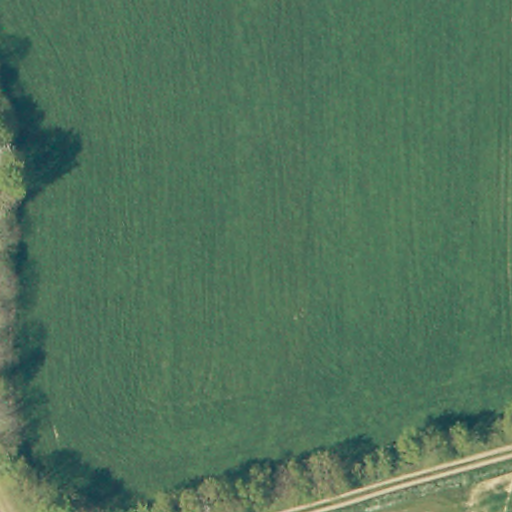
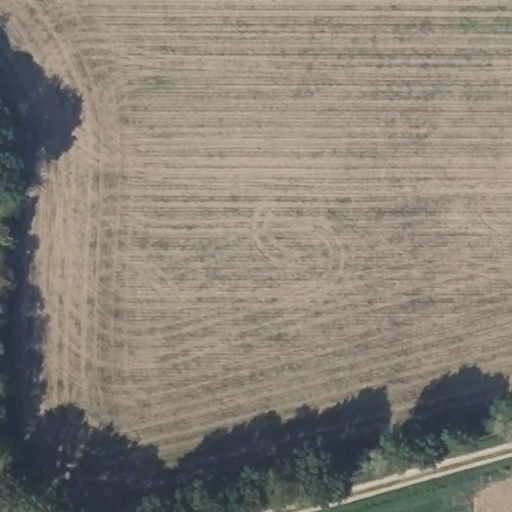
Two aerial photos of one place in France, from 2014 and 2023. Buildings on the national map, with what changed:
[]

